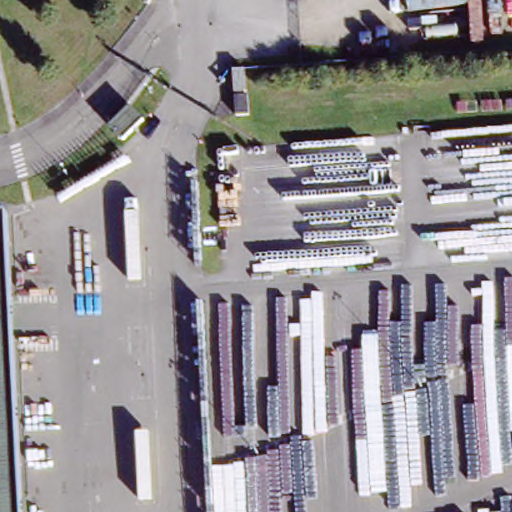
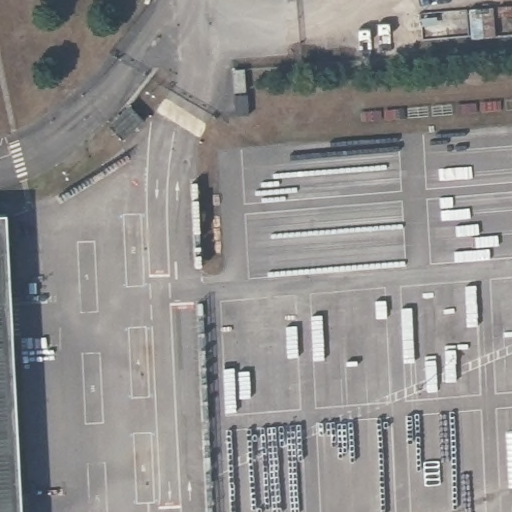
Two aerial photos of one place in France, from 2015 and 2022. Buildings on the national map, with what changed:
unchanged [(127,102),(143,119),(120,142),(103,122),(127,102)]
unchanged [(0,512),(0,221),(11,385),(19,512),(0,512)]

